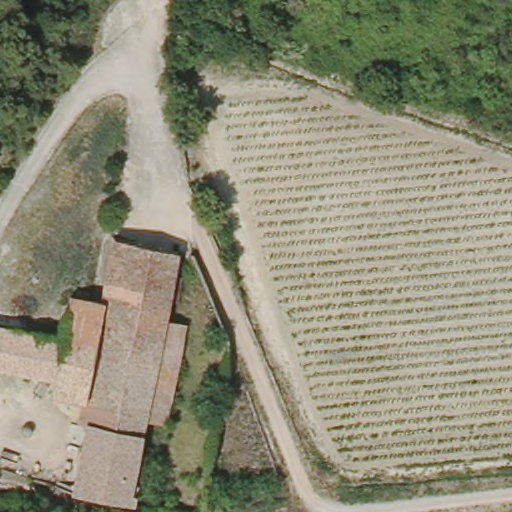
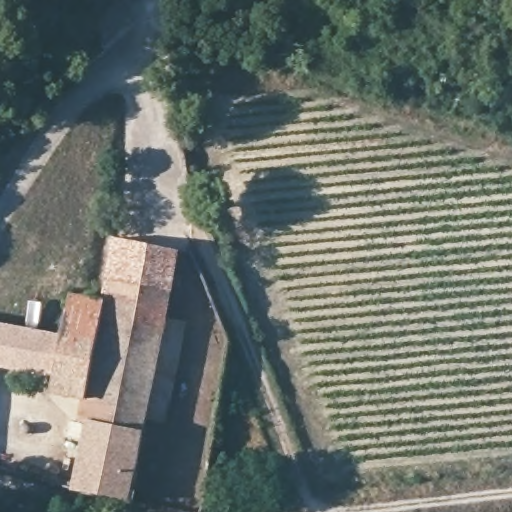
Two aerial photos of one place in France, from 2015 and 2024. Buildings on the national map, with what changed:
unchanged [(74,494),(75,489),(76,483),(86,423),(74,420),(77,397),(48,392),(50,378),(0,370),(0,326),(67,334),(74,295),(104,301),(116,238),(176,249),(164,322),(145,420),(167,424),(157,483),(152,508),(130,504),(74,494)]
unchanged [(184,324),(167,424),(145,420),(164,322),(184,324)]

